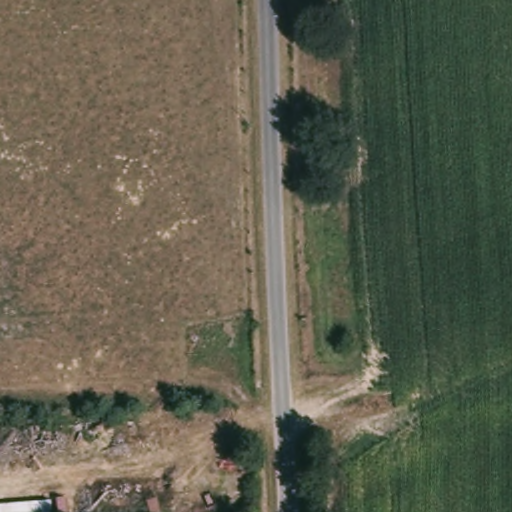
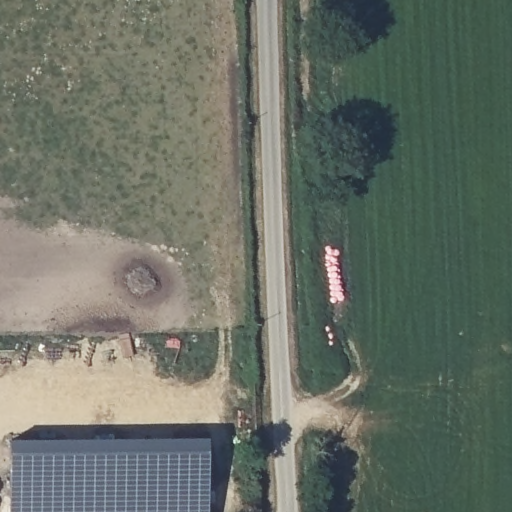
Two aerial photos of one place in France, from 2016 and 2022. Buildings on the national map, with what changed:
new [(214,439),(215,512),(16,512),(16,441),(214,439)]

